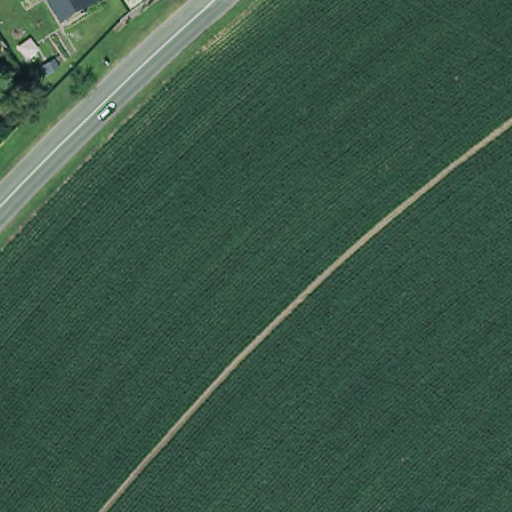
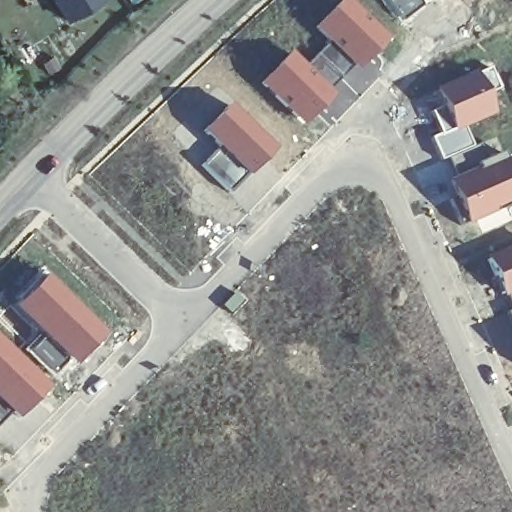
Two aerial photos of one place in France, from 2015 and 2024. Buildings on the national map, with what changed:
unchanged [(62,0),(109,0),(112,3),(77,25),(62,0)]
new [(301,125),(258,84),(290,49),(305,64),(327,42),(312,27),(338,0),(349,0),(386,41),(372,55),(385,72),(358,100),(335,122),(320,107),(301,125)]
new [(379,0),(428,0),(399,24),(379,0)]
new [(440,105),(432,88),(488,64),(500,90),(486,97),(493,114),(467,127),(463,128),(462,126),(437,133),(427,111),(440,105)]
new [(201,130),(229,102),(274,147),(245,176),(228,193),(200,164),(217,147),(201,130)]
new [(437,133),(462,126),(463,128),(467,127),(475,147),(440,163),(428,137),(437,133)]
new [(475,221),(465,226),(444,179),(502,149),(512,171),(512,220),(480,233),(475,221)]
new [(512,295),(505,299),(485,256),(512,244),(512,295)]
new [(12,306),(43,273),(103,332),(72,364),(67,359),(51,374),(25,348),(39,333),(12,306)]
new [(50,385),(15,419),(7,412),(0,420),(0,338),(50,385)]

